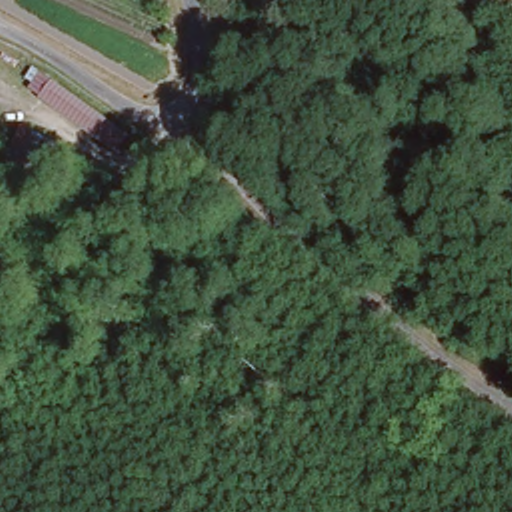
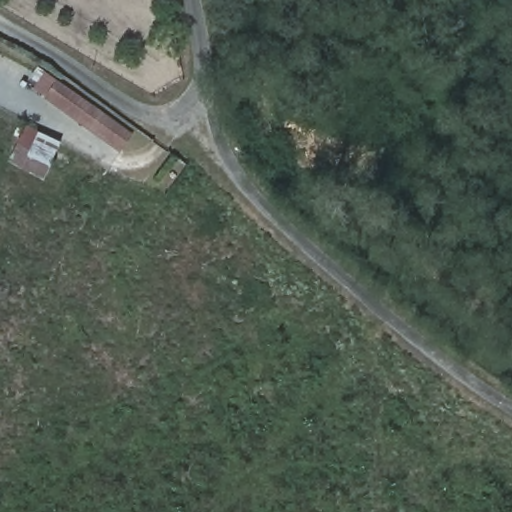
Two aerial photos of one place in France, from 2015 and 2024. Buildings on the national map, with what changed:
unchanged [(58,78),(132,130),(119,148),(41,97),(44,92),(34,83),(41,70),(58,78)]

